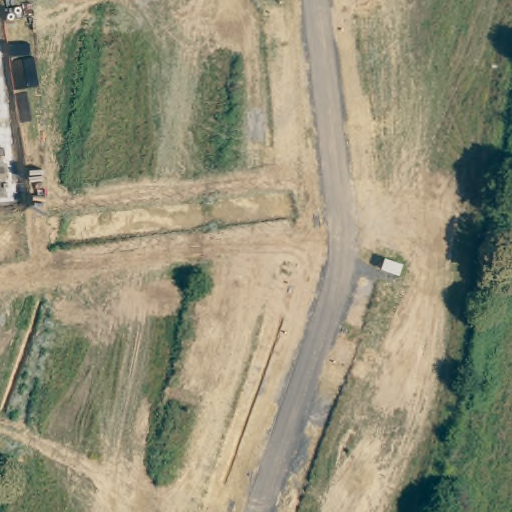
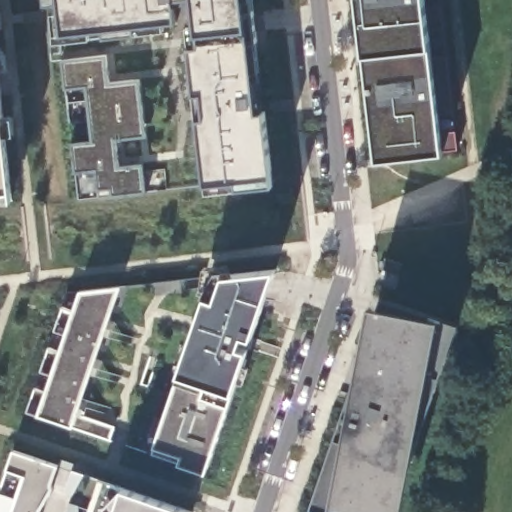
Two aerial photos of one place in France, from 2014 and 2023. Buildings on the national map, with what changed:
new [(165,21),(166,29),(138,32),(105,35),(104,29),(91,30),(91,38),(56,41),(51,2),(47,2),(47,0),(177,0),(179,20),(165,21)]
new [(255,114),(265,113),(273,187),(236,190),(209,194),(207,185),(190,49),(189,25),(196,25),(193,0),(244,0),(247,28),(255,114)]
new [(443,152),(377,159),(365,55),(360,0),(427,0),(431,46),(443,152)]
new [(107,56),(110,84),(139,80),(146,137),(116,140),(119,166),(143,164),(146,192),(112,198),(100,199),(99,189),(96,170),(76,172),(73,145),(95,142),(88,85),(66,88),(62,61),(107,56)]
new [(11,191),(14,201),(0,202),(0,92),(0,96),(11,191)]
new [(234,391),(205,472),(180,464),(181,455),(155,446),(179,375),(208,295),(205,293),(219,269),(232,268),(232,273),(275,269),(234,391)]
new [(121,287),(79,415),(115,426),(110,440),(72,427),(39,415),(27,411),(35,387),(46,390),(51,375),(41,371),(50,347),(60,350),(66,333),(55,330),(65,306),(74,311),(80,291),(121,287)]
new [(438,320),(456,324),(421,414),(402,512),(318,512),(310,510),(357,370),(372,307),(438,320)]
new [(42,512),(12,512),(22,477),(6,470),(14,450),(59,465),(42,512)]
new [(192,512),(113,512),(122,486),(192,511),(192,512)]

